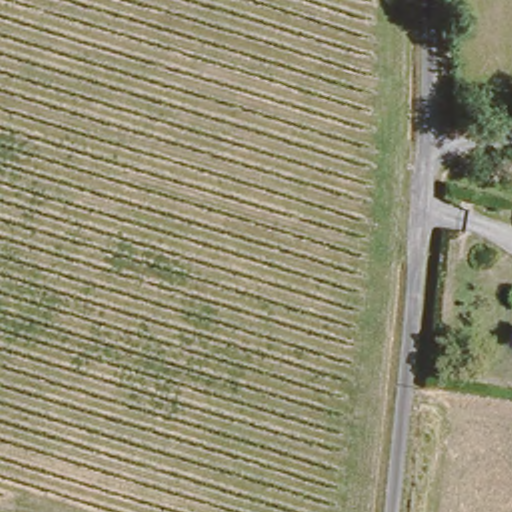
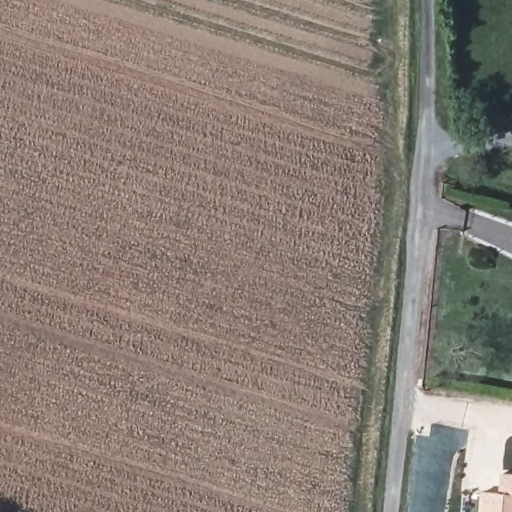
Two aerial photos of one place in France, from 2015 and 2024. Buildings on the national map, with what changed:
new [(481,512),(482,491),(499,493),(501,472),(512,473),(512,512),(481,512)]

